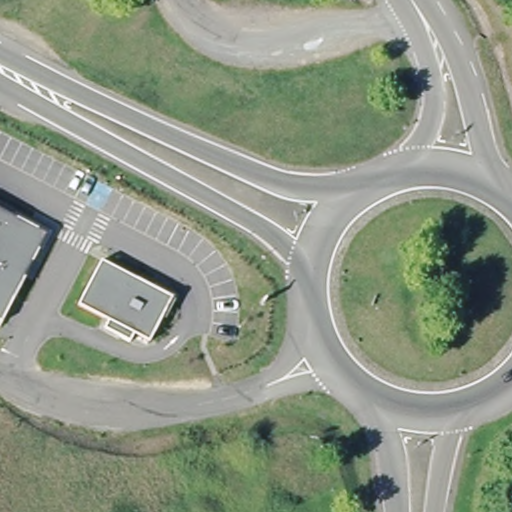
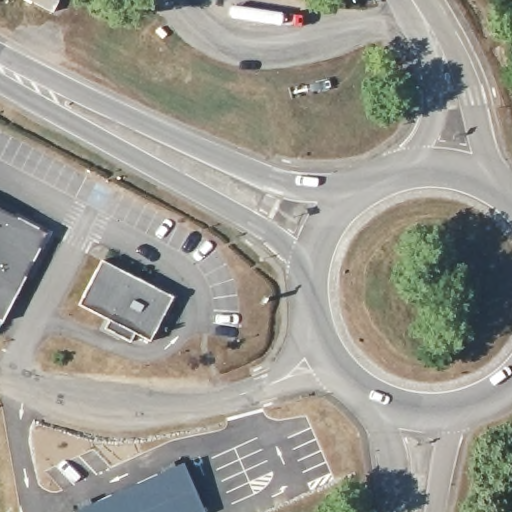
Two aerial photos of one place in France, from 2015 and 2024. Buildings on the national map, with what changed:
unchanged [(30,270),(2,323),(0,321),(0,209),(48,234),(30,270)]
unchanged [(101,262),(172,298),(149,343),(134,335),(129,343),(125,341),(104,330),(108,322),(78,306),(92,279),(101,262)]
new [(182,462),(206,512),(76,512),(75,510),(182,462)]

